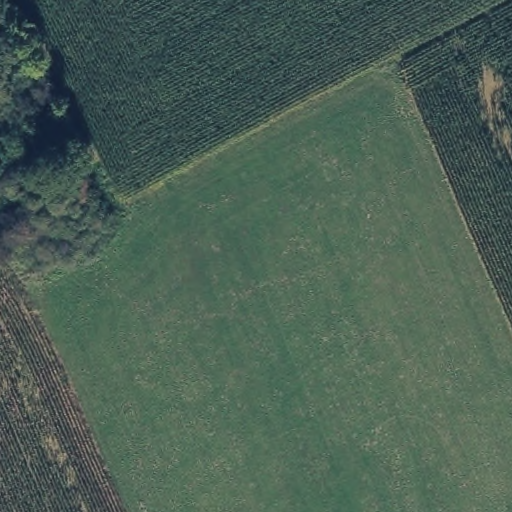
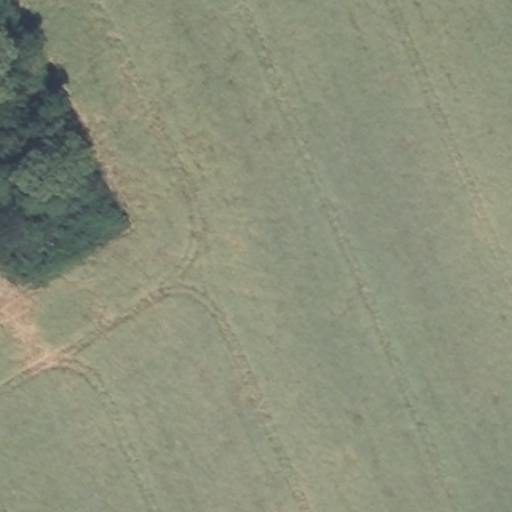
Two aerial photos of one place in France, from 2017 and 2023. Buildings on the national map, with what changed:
[]

